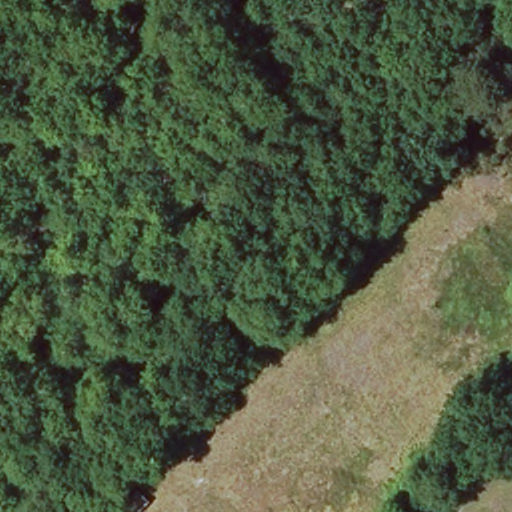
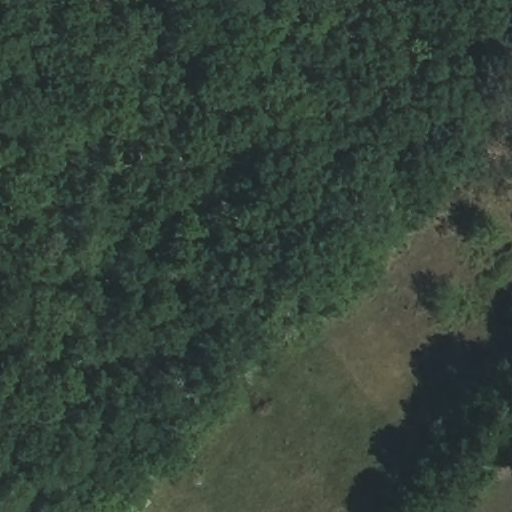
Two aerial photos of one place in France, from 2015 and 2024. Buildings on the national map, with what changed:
unchanged [(118,512),(136,490),(152,504),(145,512),(118,512)]

